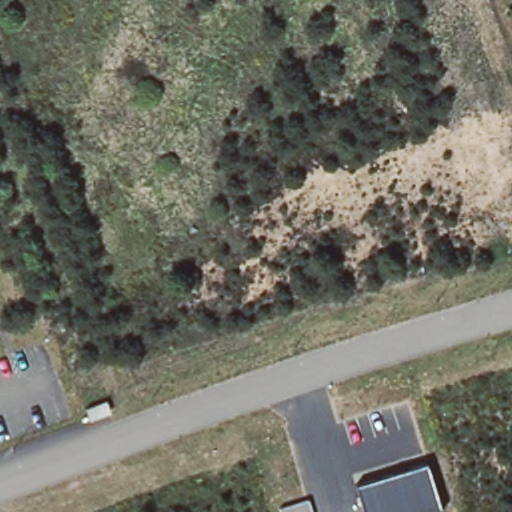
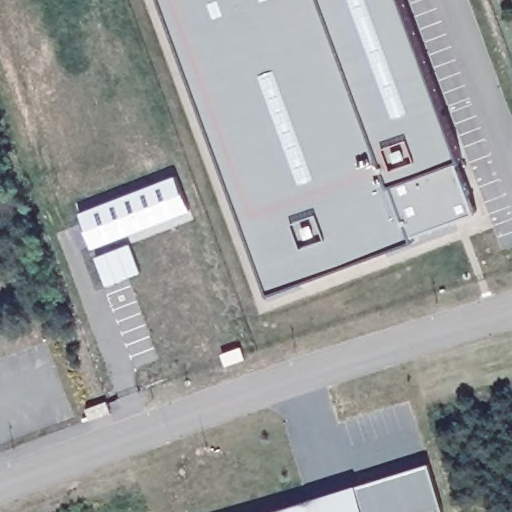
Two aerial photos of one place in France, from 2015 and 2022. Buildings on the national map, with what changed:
new [(457,159),(476,211),(412,235),(414,238),(270,290),(162,0),(402,0),(460,158),(457,159)]
new [(175,179),(188,213),(90,250),(77,216),(175,179)]
new [(127,245),(139,275),(105,287),(94,257),(127,245)]
unchanged [(103,403),(105,410),(107,414),(107,415),(86,422),(82,411),(103,403)]
unchanged [(359,484),(430,461),(446,509),(437,512),(367,512),(359,484)]
new [(367,512),(267,512),(359,484),(367,512)]
demolished [(312,500),(315,512),(284,512),(283,509),(312,500)]

